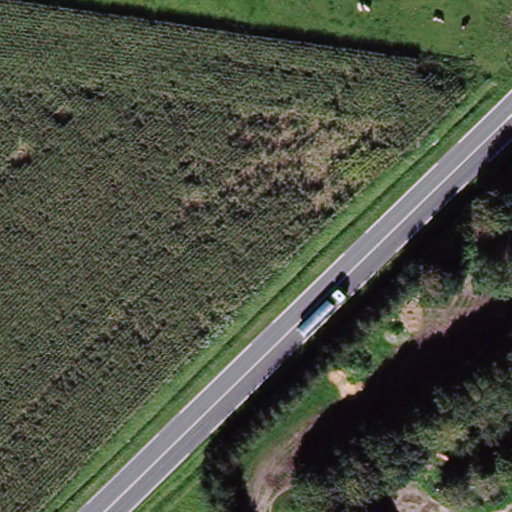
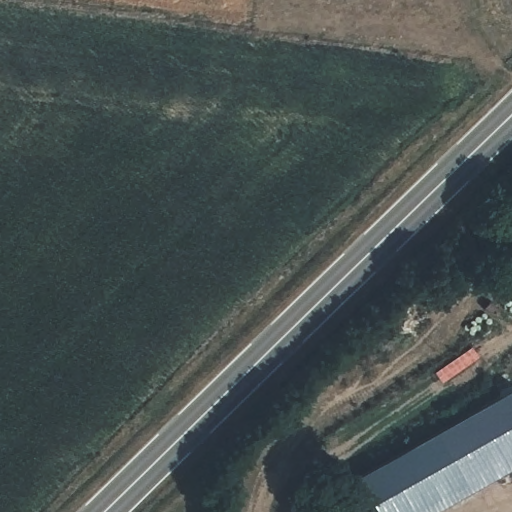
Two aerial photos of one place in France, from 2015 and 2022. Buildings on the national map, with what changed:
new [(354,482),(512,397),(512,470),(433,512),(377,512),(354,482)]

